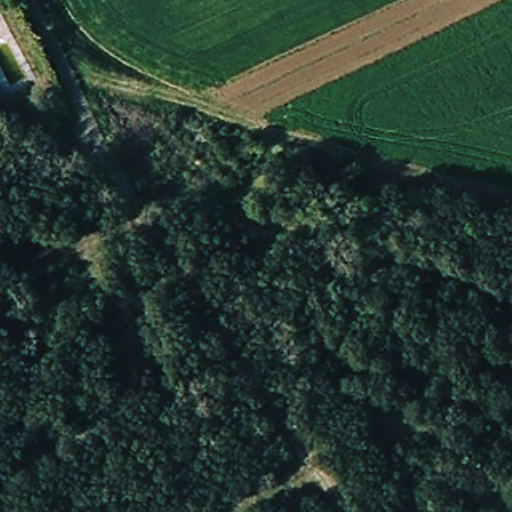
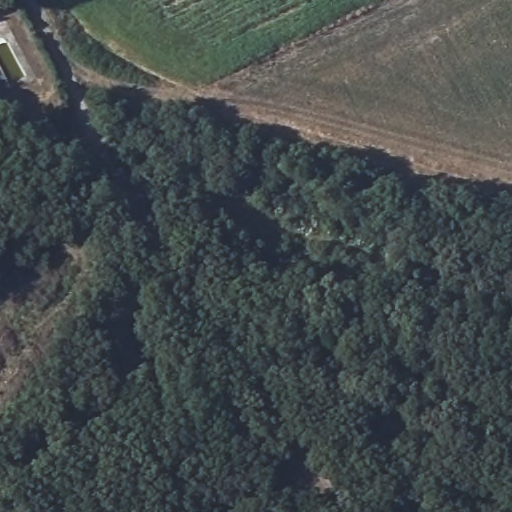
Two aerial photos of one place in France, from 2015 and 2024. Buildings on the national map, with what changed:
[]

